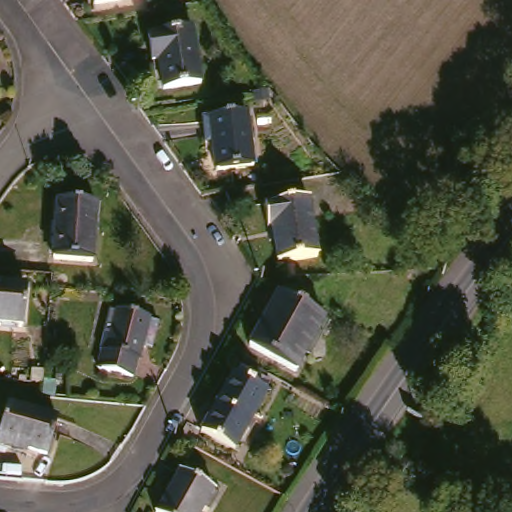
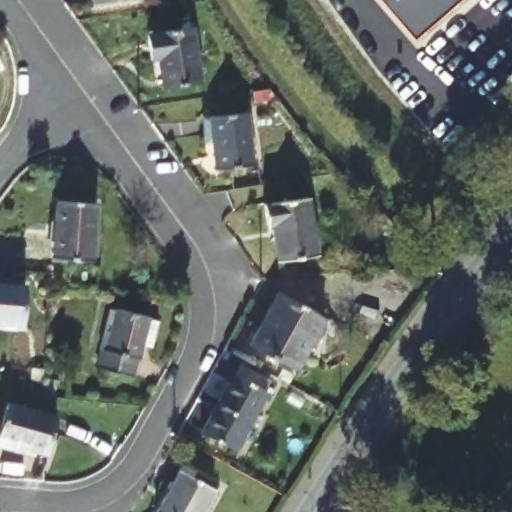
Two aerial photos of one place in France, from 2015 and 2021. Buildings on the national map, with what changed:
unchanged [(93,4),(92,0),(119,0),(93,4)]
new [(413,40),(379,0),(460,0),(413,40)]
unchanged [(164,87),(160,60),(153,61),(148,35),(192,28),(201,82),(164,87)]
unchanged [(211,171),(203,119),(241,114),(248,166),(211,171)]
unchanged [(53,258),(58,202),(96,204),(93,262),(53,258)]
unchanged [(273,268),(268,232),(263,232),(259,210),(302,204),(311,262),(273,268)]
unchanged [(0,325),(0,285),(25,287),(21,327),(0,325)]
unchanged [(249,345),(278,293),(325,320),(296,371),(249,345)]
unchanged [(132,347),(128,361),(126,360),(122,377),(88,368),(93,351),(90,350),(101,311),(107,312),(108,310),(140,318),(139,321),(148,323),(141,350),(132,347)]
unchanged [(229,461),(196,443),(229,385),(236,375),(266,392),(260,402),(261,402),(229,461)]
unchanged [(0,448),(0,422),(6,400),(16,402),(13,412),(52,423),(41,460),(0,448)]
unchanged [(214,491),(202,512),(157,512),(180,472),(214,491)]

